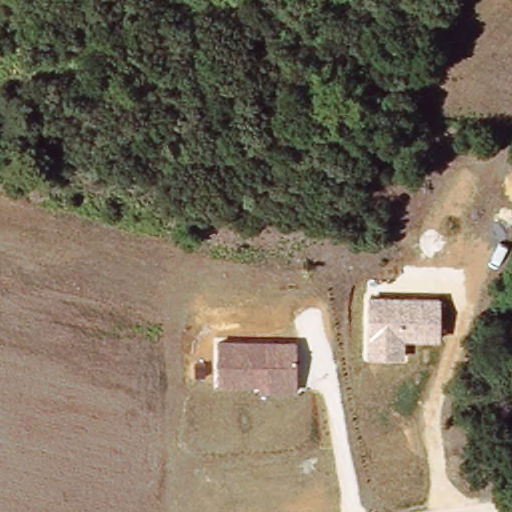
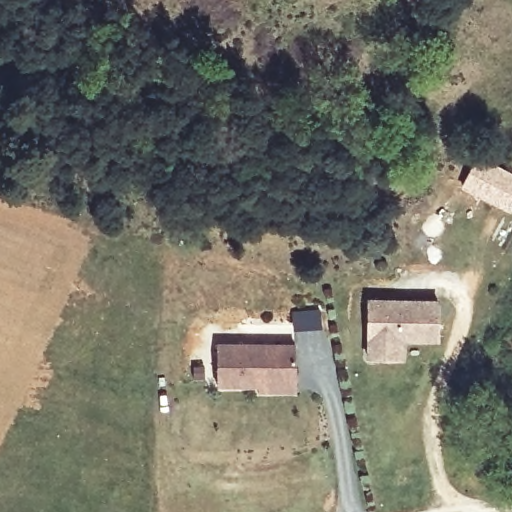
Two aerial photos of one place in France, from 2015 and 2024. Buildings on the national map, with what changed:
new [(462,186),(479,156),(512,173),(512,206),(509,212),(462,186)]
unchanged [(440,300),(440,341),(404,342),(403,358),(366,358),(367,300),(440,300)]
unchanged [(296,345),(295,391),(260,392),(260,387),(217,387),(218,343),(296,345)]

